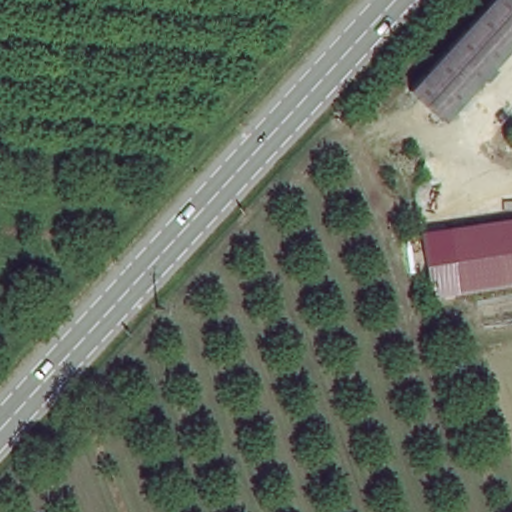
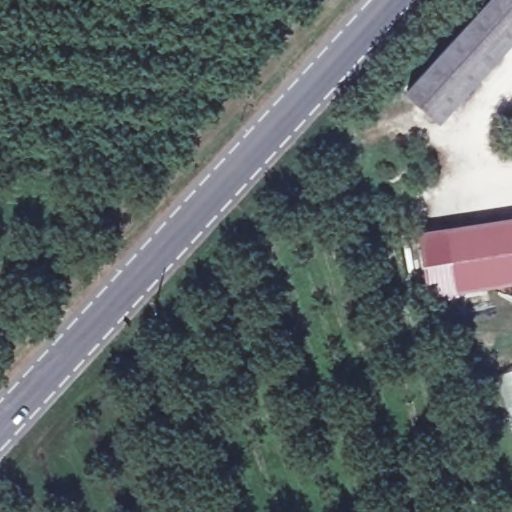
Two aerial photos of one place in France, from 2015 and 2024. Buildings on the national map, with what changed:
unchanged [(402,87),(490,0),(512,0),(512,44),(439,116),(435,121),(431,117),(402,87)]
unchanged [(458,290),(452,230),(512,224),(512,285),(458,290)]

